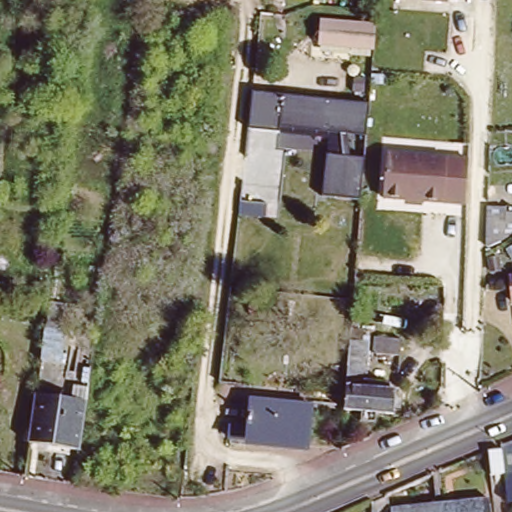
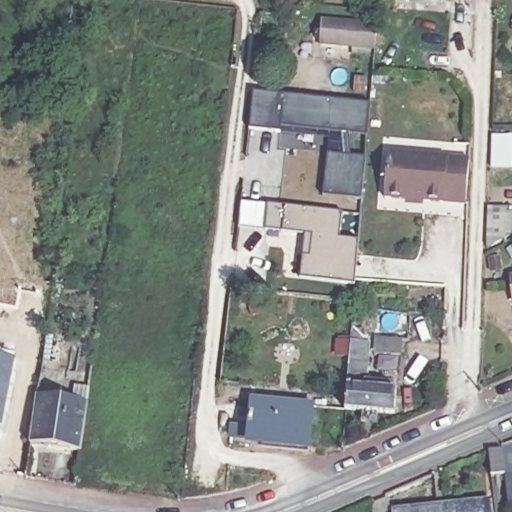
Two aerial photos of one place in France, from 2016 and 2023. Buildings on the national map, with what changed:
unchanged [(314,45),(316,20),(372,24),(370,50),(314,45)]
unchanged [(328,151),(344,153),(345,134),(250,125),(253,90),(371,102),(361,200),(324,196),(328,151)]
unchanged [(388,148),(469,152),(467,196),(386,193),(388,148)]
new [(299,277),(304,234),(264,230),(266,205),(340,214),(337,239),(356,241),(353,285),(299,277)]
unchanged [(509,206),(512,207),(512,233),(506,238),(488,239),(487,205),(509,206)]
unchanged [(502,264),(512,263),(512,300),(506,301),(502,264)]
demolished [(59,298),(68,299),(63,328),(61,328),(48,327),(52,297),(59,298)]
unchanged [(379,386),(378,391),(391,392),(389,416),(339,412),(341,397),(346,341),(347,331),(359,333),(358,336),(366,336),(365,343),(361,383),(379,386)]
unchanged [(395,358),(368,356),(369,340),(396,342),(395,358)]
unchanged [(25,444),(26,440),(33,396),(68,401),(71,387),(85,389),(83,402),(76,452),(25,444)]
unchanged [(308,446),(229,438),(231,426),(248,428),(251,400),(313,407),(308,446)]
unchanged [(501,446),(512,441),(512,472),(504,472),(501,446)]
unchanged [(512,505),(508,505),(504,472),(512,472),(512,505)]
unchanged [(486,512),(436,512),(436,505),(484,500),(486,512)]
unchanged [(436,505),(436,512),(387,512),(387,509),(436,505)]

